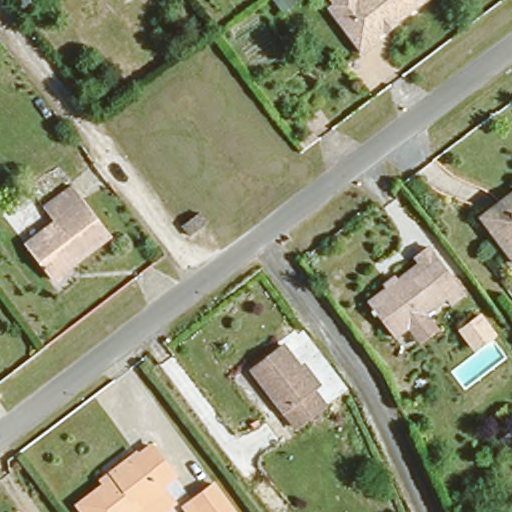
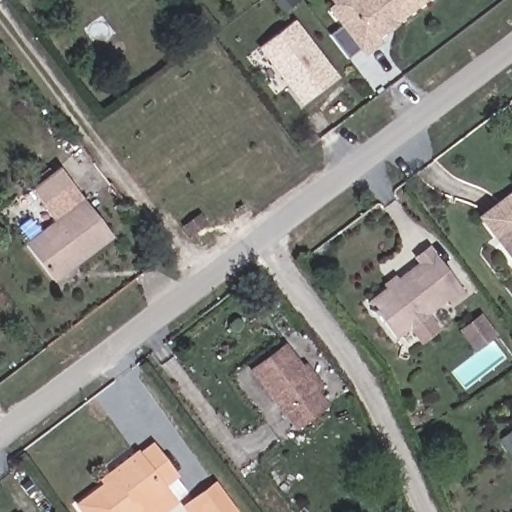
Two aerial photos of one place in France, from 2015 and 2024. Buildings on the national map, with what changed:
unchanged [(296,1),(282,12),(271,1),(272,0),(296,0),(296,1)]
unchanged [(377,25),(380,34),(365,45),(329,4),(333,1),(333,0),(407,0),(377,25)]
new [(336,74),(302,101),(259,46),(293,19),(336,74)]
unchanged [(47,202),(74,180),(112,225),(56,271),(28,235),(56,212),(47,202)]
unchanged [(498,196),(512,185),(512,258),(476,214),(498,196)]
unchanged [(194,232),(184,217),(198,204),(211,219),(194,232)]
unchanged [(423,332),(411,316),(393,329),(366,294),(417,256),(413,248),(425,238),(462,284),(452,293),(448,289),(427,304),(438,320),(423,332)]
new [(483,317),(497,335),(477,351),(463,333),(483,317)]
unchanged [(324,397),(293,419),(248,362),(278,338),(324,397)]
unchanged [(122,512),(117,505),(108,512),(88,512),(71,492),(106,463),(101,457),(123,438),(129,445),(142,433),(162,457),(148,470),(152,477),(152,478),(162,490),(134,512),(122,512)]
unchanged [(217,473),(240,503),(229,512),(199,512),(197,510),(187,497),(217,473)]
unchanged [(22,512),(10,512),(17,507),(22,512)]

